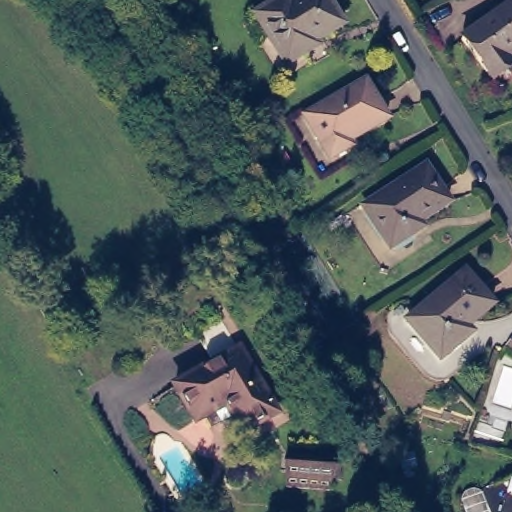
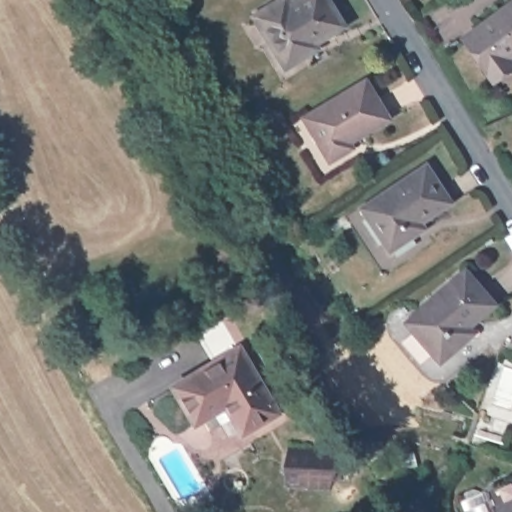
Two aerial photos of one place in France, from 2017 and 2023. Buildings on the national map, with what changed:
unchanged [(265,3),(271,0),(335,0),(346,18),(308,41),(311,46),(288,59),(271,32),(258,40),(244,16),(265,3)]
unchanged [(510,0),(512,0),(512,52),(512,53),(512,61),(496,72),(466,32),(510,0)]
unchanged [(348,145),(327,158),(302,116),(364,80),(385,116),(352,136),(345,140),(348,145)]
unchanged [(415,228),(392,243),(366,202),(429,160),(452,196),(421,216),(425,222),(415,228)]
unchanged [(491,294),(471,311),(467,308),(462,313),(470,322),(437,350),(405,312),(464,261),(491,294)]
unchanged [(205,357),(187,327),(212,313),(230,343),(205,357)]
unchanged [(507,335),(512,338),(512,353),(499,345),(507,335)]
unchanged [(267,407),(234,427),(232,424),(219,432),(212,419),(201,425),(194,412),(187,417),(165,381),(205,357),(230,343),(267,407)]
unchanged [(295,449),(339,452),(337,495),(292,492),(295,449)]

